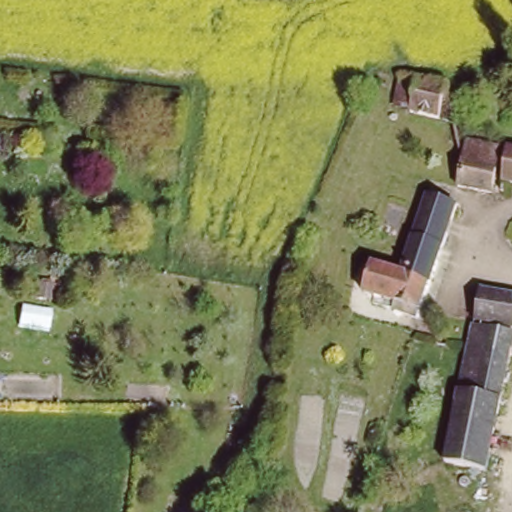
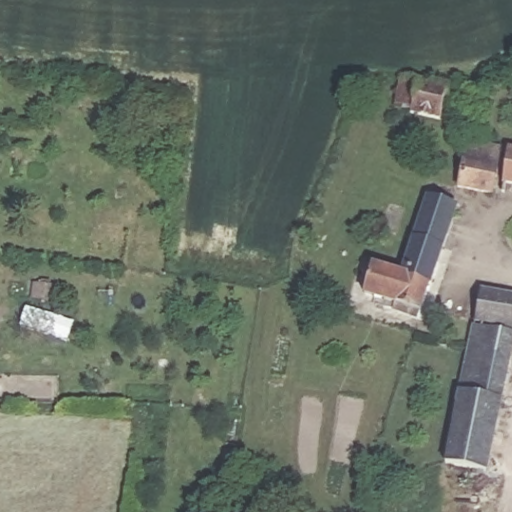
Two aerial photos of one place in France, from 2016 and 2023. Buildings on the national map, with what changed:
unchanged [(407,111),(413,79),(443,86),(450,119),(407,111)]
unchanged [(467,155),(471,139),(502,146),(492,188),(462,182),(467,155)]
unchanged [(512,146),(512,183),(505,182),(510,146),(512,146)]
unchanged [(405,273),(431,197),(457,206),(432,282),(405,273)]
unchanged [(405,273),(432,282),(422,311),(421,310),(366,291),(376,263),(405,273)]
unchanged [(486,292),(512,297),(512,329),(469,320),(473,299),(486,292)]
unchanged [(489,468),(447,460),(467,352),(473,324),(490,327),(512,332),(512,353),(489,468)]

